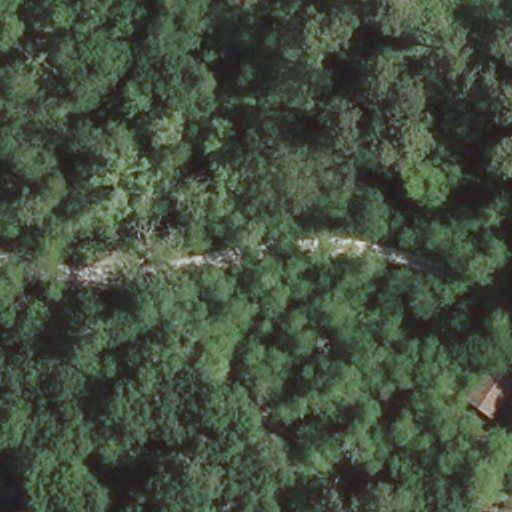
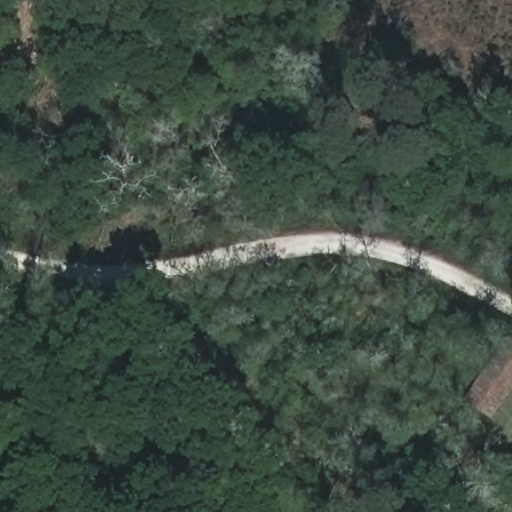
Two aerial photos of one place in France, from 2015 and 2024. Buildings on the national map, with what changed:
unchanged [(476,377),(507,339),(512,343),(512,386),(504,396),(476,377)]

